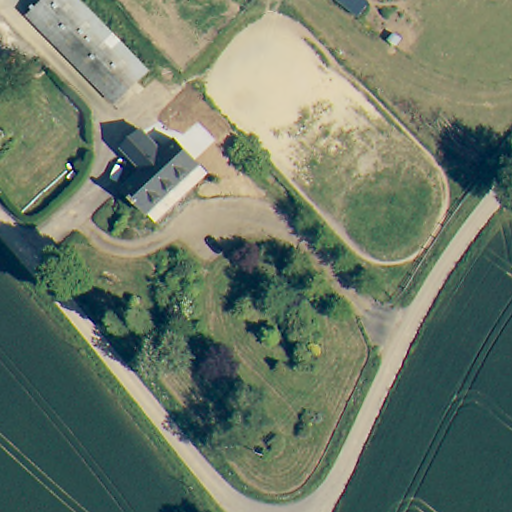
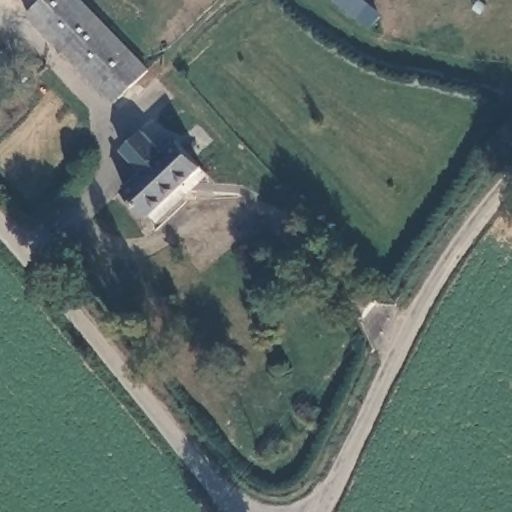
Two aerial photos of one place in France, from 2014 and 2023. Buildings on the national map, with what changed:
unchanged [(147,71),(114,104),(26,14),(40,0),(78,0),(147,71)]
unchanged [(199,167),(148,217),(123,191),(175,141),(199,167)]

